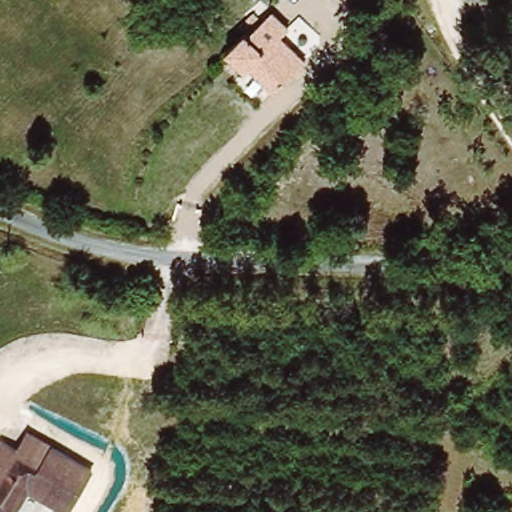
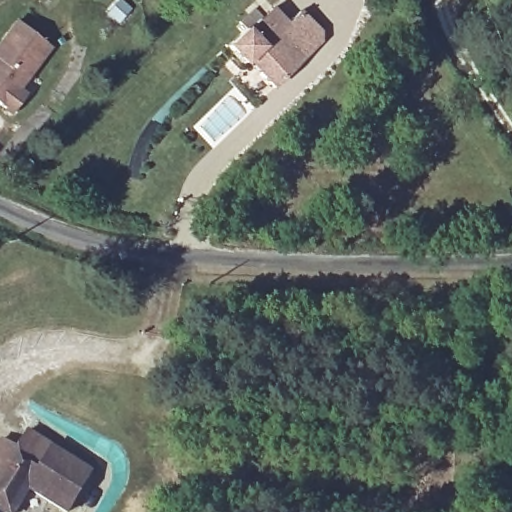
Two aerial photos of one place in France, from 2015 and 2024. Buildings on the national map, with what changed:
unchanged [(243,68),(225,52),(235,40),(240,43),(249,32),(266,10),(277,18),(285,25),(300,9),(321,30),(322,40),(305,58),(281,84),(276,91),(246,65),(243,68)]
new [(54,46),(23,88),(29,93),(11,113),(0,104),(0,39),(16,18),(54,46)]
unchanged [(67,512),(64,512),(27,490),(13,512),(0,512),(0,443),(1,440),(15,447),(27,431),(91,471),(67,512)]

